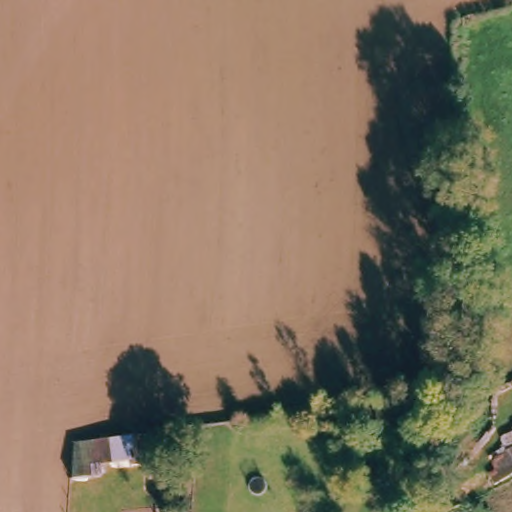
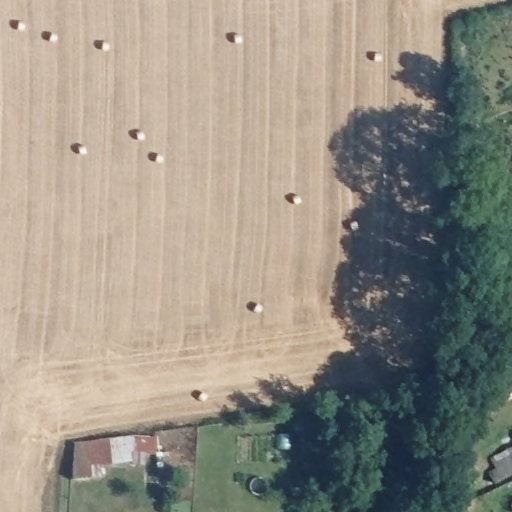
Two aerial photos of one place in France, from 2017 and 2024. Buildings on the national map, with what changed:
unchanged [(510,435),(512,434),(512,439),(510,435)]
unchanged [(99,483),(70,480),(70,441),(146,440),(146,455),(128,453),(128,461),(98,465),(99,483)]
unchanged [(494,477),(482,458),(512,448),(512,470),(494,477)]

